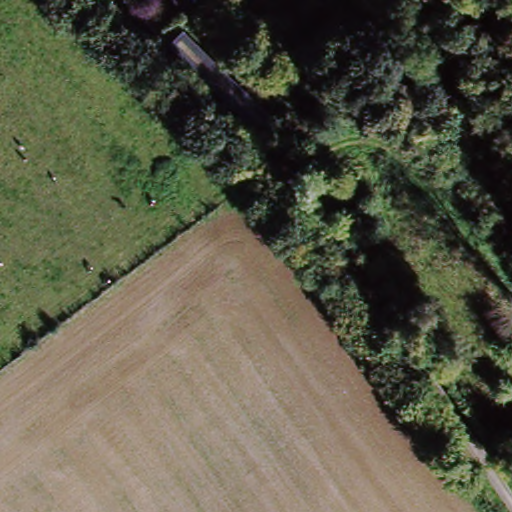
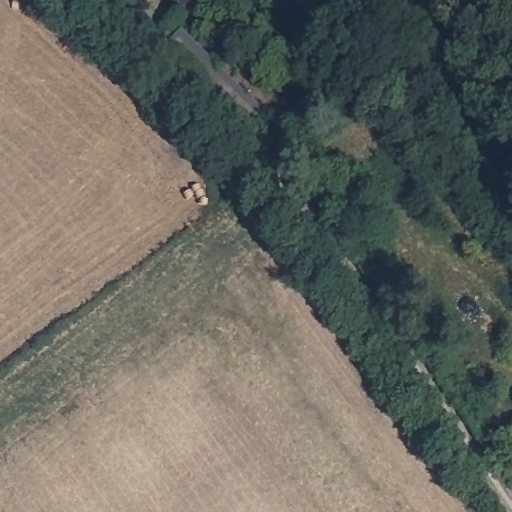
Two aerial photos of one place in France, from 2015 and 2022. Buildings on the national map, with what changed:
unchanged [(172,0),(186,0),(176,7),(172,0)]
unchanged [(236,0),(250,22),(227,36),(205,0),(236,0)]
unchanged [(247,65),(233,42),(256,27),(270,51),(247,65)]
unchanged [(165,44),(181,30),(272,115),(255,132),(165,44)]

